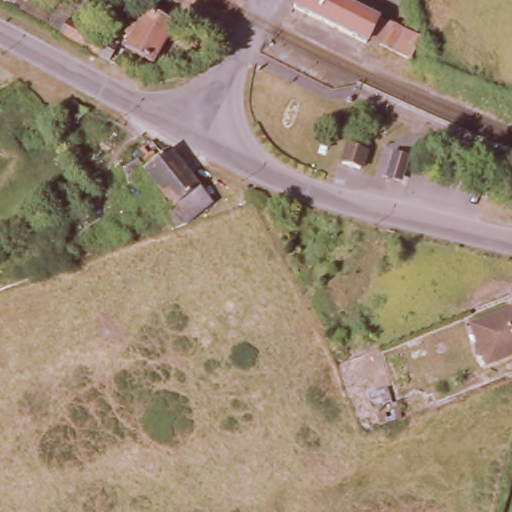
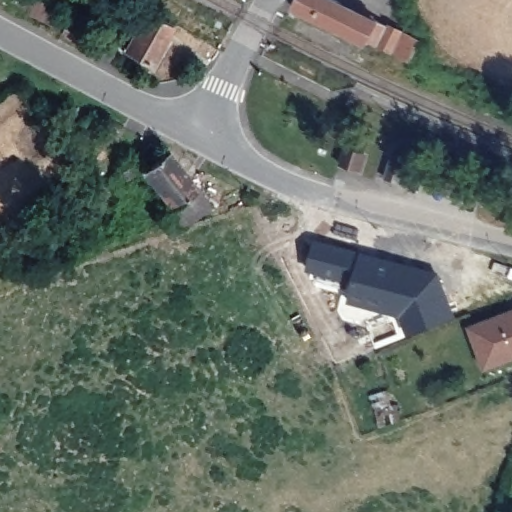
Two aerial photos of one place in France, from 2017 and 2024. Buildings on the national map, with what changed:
unchanged [(406,31),(396,51),(373,40),(370,46),(298,10),(303,0),(342,0),(406,31)]
unchanged [(174,24),(153,63),(125,49),(133,35),(123,30),(129,20),(138,24),(146,10),(174,24)]
unchanged [(114,41),(105,57),(87,47),(59,31),(69,15),(114,41)]
unchanged [(389,66),(384,77),(351,62),(356,51),(389,66)]
unchanged [(91,118),(78,133),(59,115),(72,101),(91,118)]
unchanged [(369,153),(364,170),(344,165),(349,147),(369,153)]
unchanged [(218,202),(192,224),(151,176),(137,187),(132,181),(128,183),(123,177),(141,164),(142,165),(156,154),(160,160),(171,151),(173,149),(206,187),(218,202)]
unchanged [(407,157),(399,181),(388,177),(395,154),(407,157)]
new [(400,315),(346,301),(351,282),(306,269),(316,238),(359,249),(439,271),(458,316),(408,335),(400,315)]
unchanged [(490,366),(475,329),(512,314),(512,358),(490,366)]

